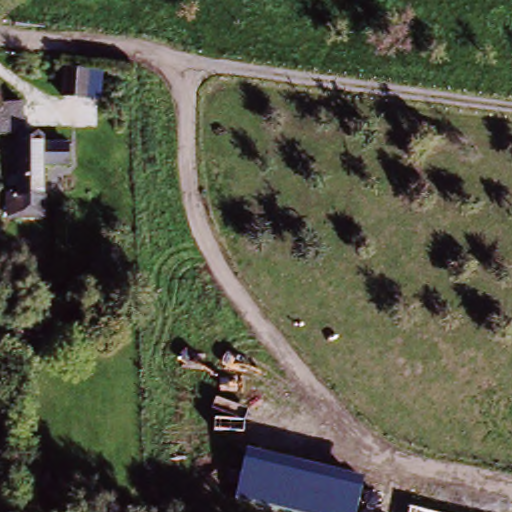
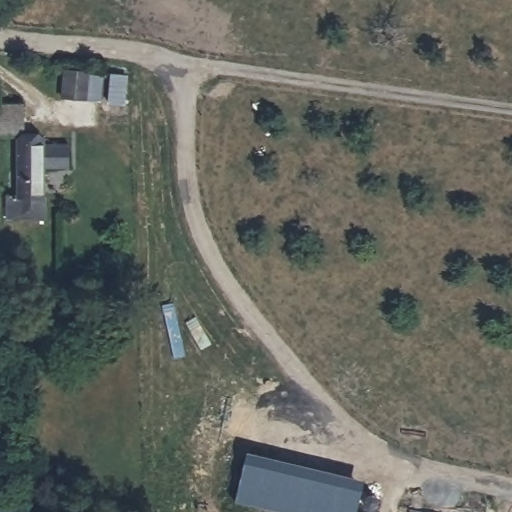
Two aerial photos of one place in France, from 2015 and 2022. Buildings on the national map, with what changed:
unchanged [(97,100),(60,96),(63,68),(100,72),(97,100)]
unchanged [(7,134),(6,106),(32,105),(33,133),(7,134)]
unchanged [(79,166),(54,166),(54,219),(18,218),(18,196),(28,196),(29,142),(54,142),(54,146),(79,146),(79,166)]
unchanged [(240,453),(337,475),(330,511),(232,487),(240,453)]

